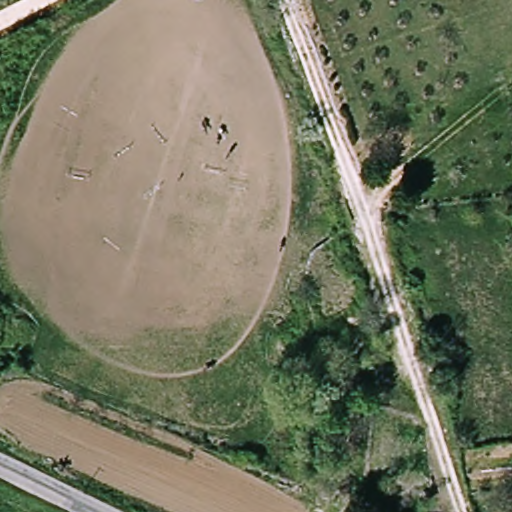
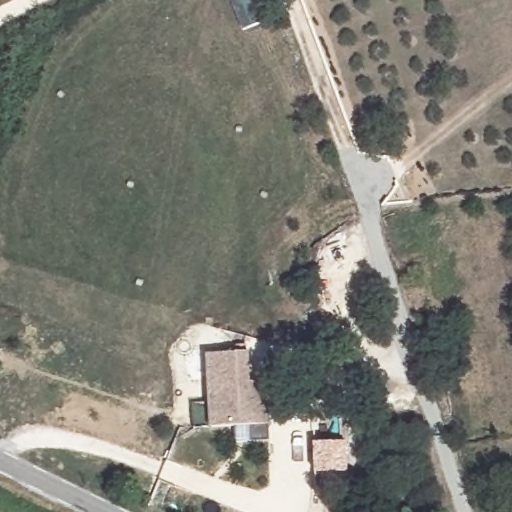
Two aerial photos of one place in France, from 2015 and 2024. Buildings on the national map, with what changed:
new [(253,381),(264,381),(267,423),(209,427),(205,354),(251,350),(253,381)]
new [(321,487),(320,445),(341,445),(343,486),(321,487)]

